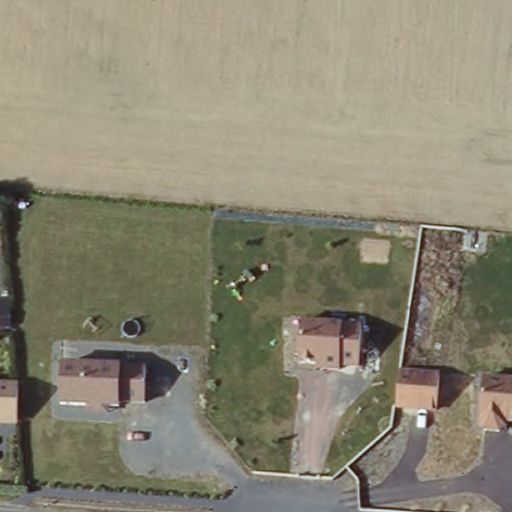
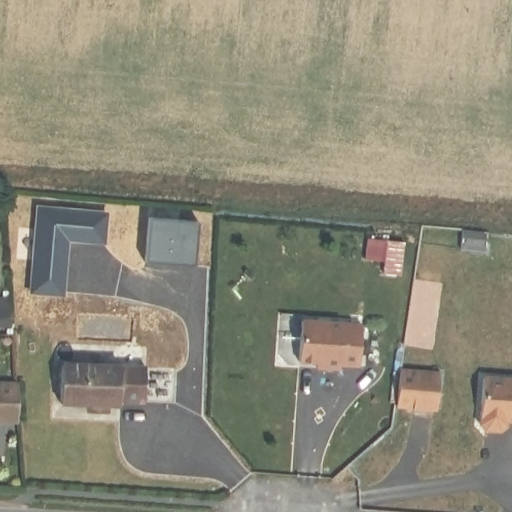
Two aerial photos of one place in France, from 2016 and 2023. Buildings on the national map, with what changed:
new [(107,212),(105,245),(66,242),(63,297),(28,293),(35,206),(107,212)]
new [(147,217),(195,220),(193,265),(143,260),(147,217)]
new [(463,228),(488,230),(486,251),(461,249),(463,228)]
unchanged [(301,321),(344,323),(344,327),(361,327),(358,368),(340,367),(339,372),(313,370),(313,365),(298,364),(301,321)]
unchanged [(60,362),(62,362),(120,363),(120,367),(144,368),(144,405),(119,405),(108,406),(106,415),(84,415),(85,407),(59,406),(60,362)]
unchanged [(398,371),(439,374),(436,412),(395,410),(398,371)]
unchanged [(512,380),(512,422),(507,422),(506,428),(500,433),(484,432),(478,425),(481,377),(512,380)]
new [(16,381),(14,425),(0,424),(0,380),(16,381)]

